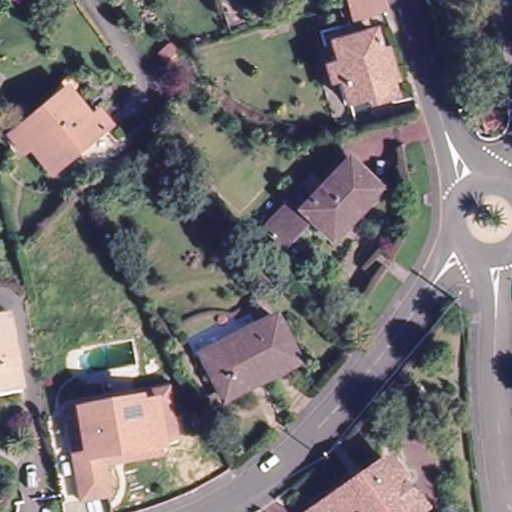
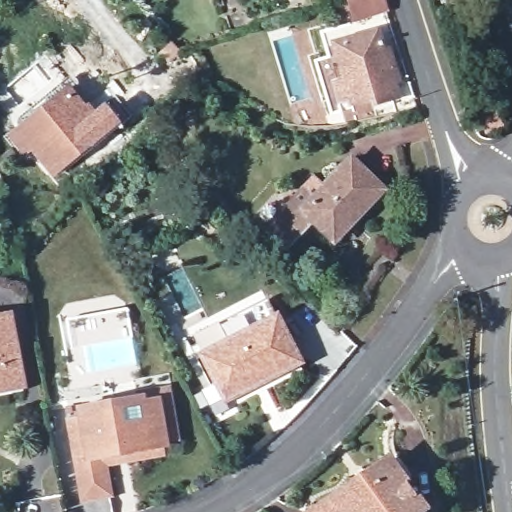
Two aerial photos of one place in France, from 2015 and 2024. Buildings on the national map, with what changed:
unchanged [(385,0),(390,14),(357,25),(350,5),(366,0),(385,0)]
unchanged [(375,110),(373,105),(355,111),(347,86),(335,90),(330,74),(342,70),(336,52),(378,38),(385,57),(391,55),(400,86),(395,89),(398,102),(375,110)]
unchanged [(68,91),(91,121),(100,115),(110,129),(54,176),(30,148),(25,152),(12,136),(44,111),(68,91)]
unchanged [(350,169),(374,193),(375,194),(338,230),(325,243),(308,225),(281,252),(280,252),(268,240),(255,227),(295,187),(310,172),(324,185),(330,179),(345,164),(350,169)]
new [(120,311),(125,341),(76,352),(67,354),(60,325),(120,311)]
unchanged [(26,393),(0,398),(0,323),(14,320),(26,393)]
unchanged [(256,320),(262,332),(282,323),(303,366),(230,403),(207,360),(247,339),(241,326),(256,320)]
unchanged [(102,464),(109,491),(85,496),(69,417),(135,403),(132,391),(166,385),(169,397),(176,435),(162,438),(165,450),(102,464)]
unchanged [(370,463),(404,509),(400,512),(306,512),(370,463)]

